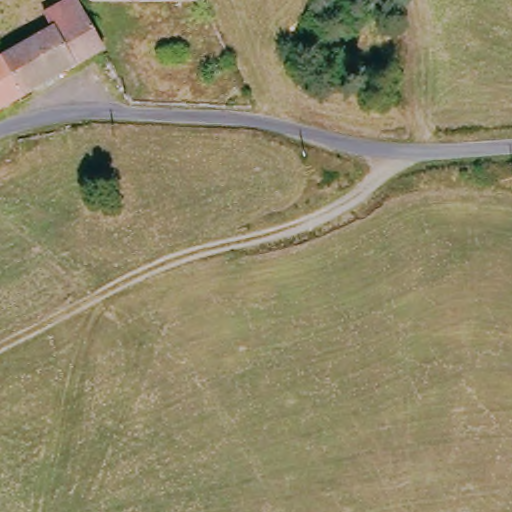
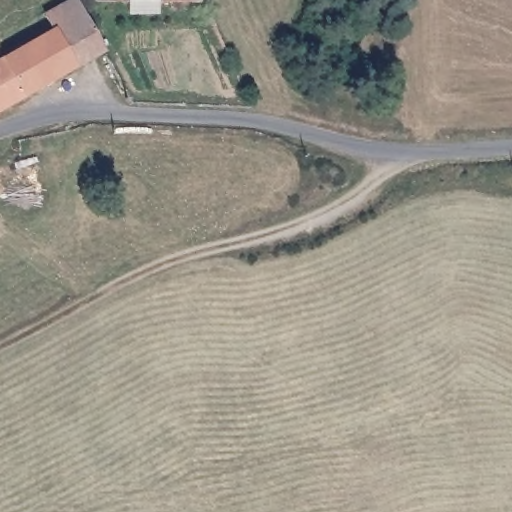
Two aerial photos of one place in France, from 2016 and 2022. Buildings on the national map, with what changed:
unchanged [(74,66),(53,30),(50,31),(41,15),(71,0),(74,0),(105,50),(74,66)]
unchanged [(53,30),(74,66),(0,108),(0,59),(50,31),(53,30)]

